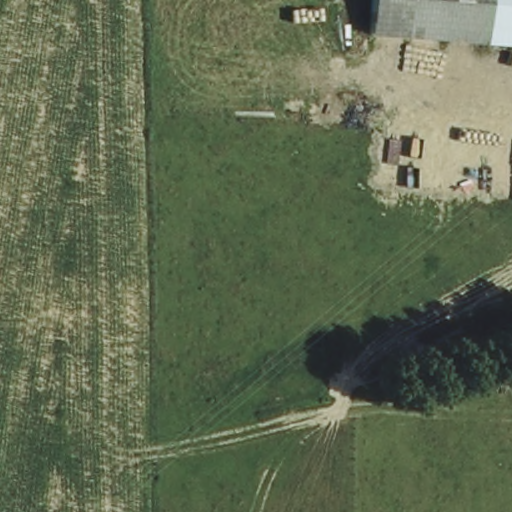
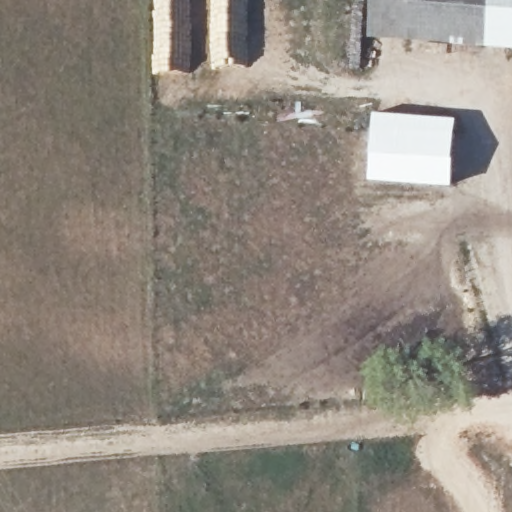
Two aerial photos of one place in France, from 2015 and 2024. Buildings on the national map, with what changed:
unchanged [(483,44),(366,36),(370,0),(486,0),(483,44)]
unchanged [(486,0),(512,0),(512,47),(483,44),(486,0)]
new [(456,117),(451,185),(369,179),(374,111),(456,117)]

